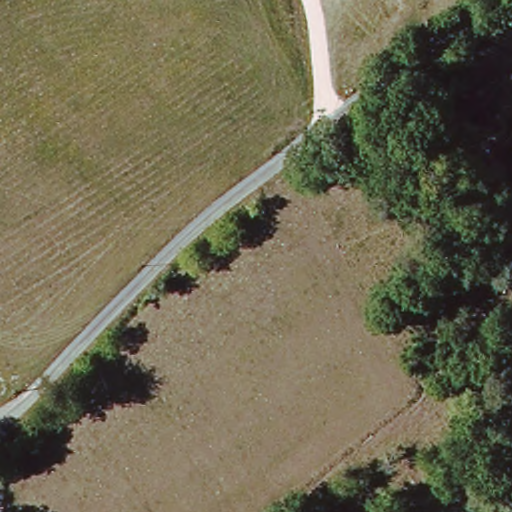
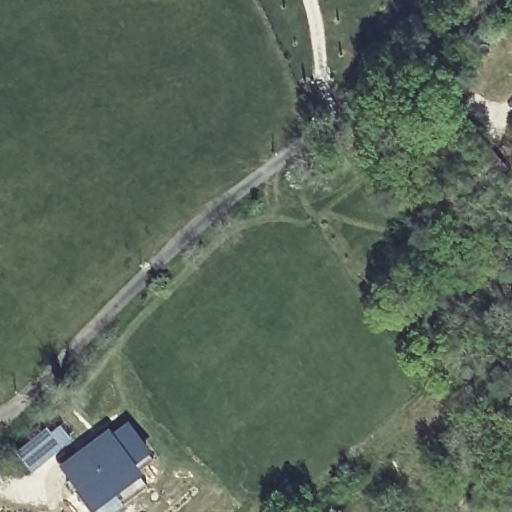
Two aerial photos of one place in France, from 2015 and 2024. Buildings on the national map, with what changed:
new [(152,451),(147,455),(154,460),(141,470),(144,474),(141,476),(147,484),(111,512),(92,512),(84,502),(86,500),(59,465),(109,428),(112,432),(129,421),(152,451)]

